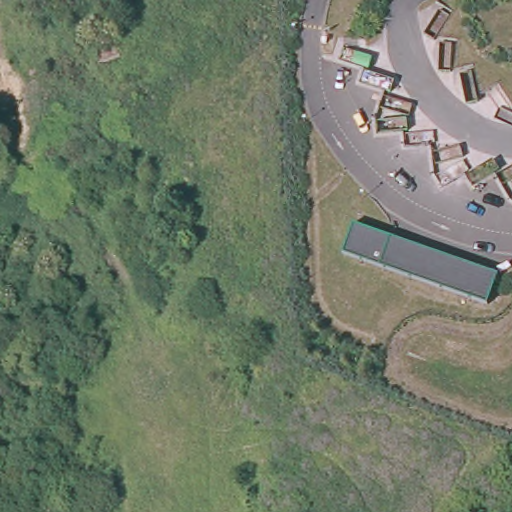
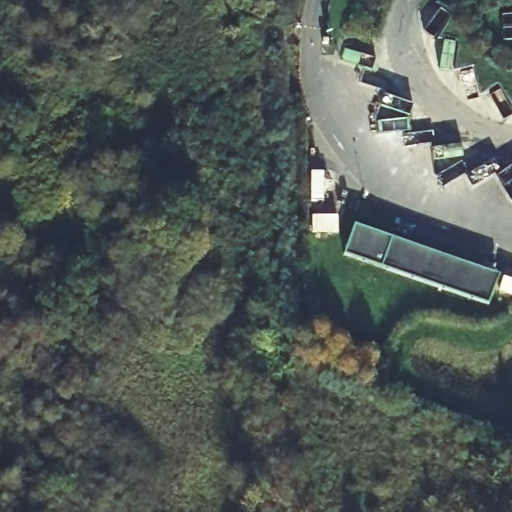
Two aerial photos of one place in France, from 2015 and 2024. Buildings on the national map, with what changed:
unchanged [(352,223),(499,273),(488,305),(342,254),(352,223)]

